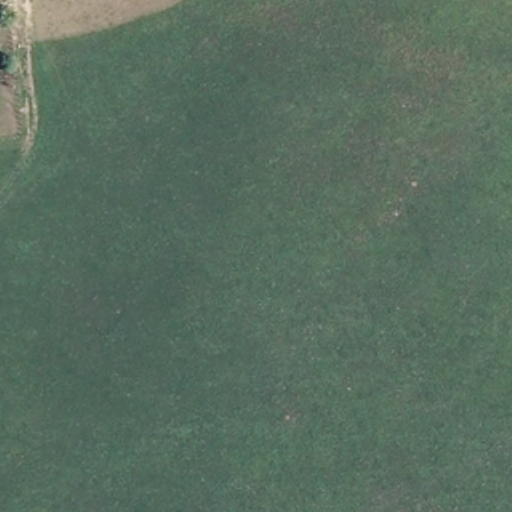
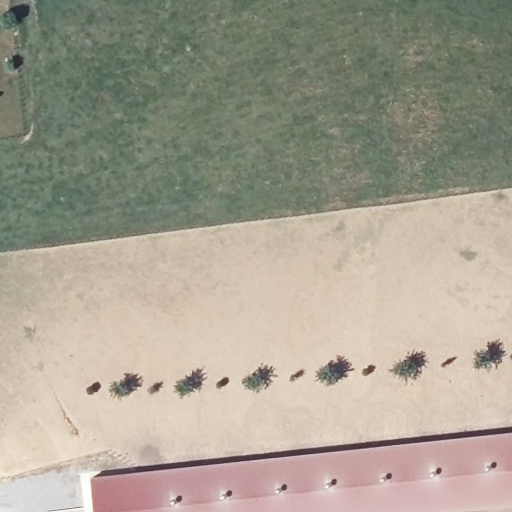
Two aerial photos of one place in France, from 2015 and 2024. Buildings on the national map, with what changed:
new [(95,512),(92,477),(512,432),(512,507),(462,512),(95,512)]

